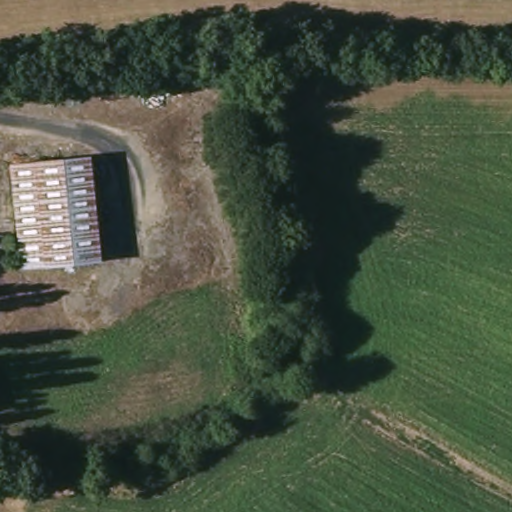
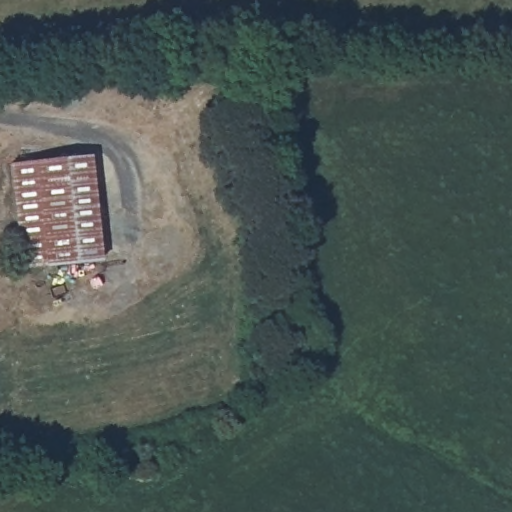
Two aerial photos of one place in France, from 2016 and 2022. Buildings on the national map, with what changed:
unchanged [(99,262),(21,269),(10,164),(88,157),(99,262)]

